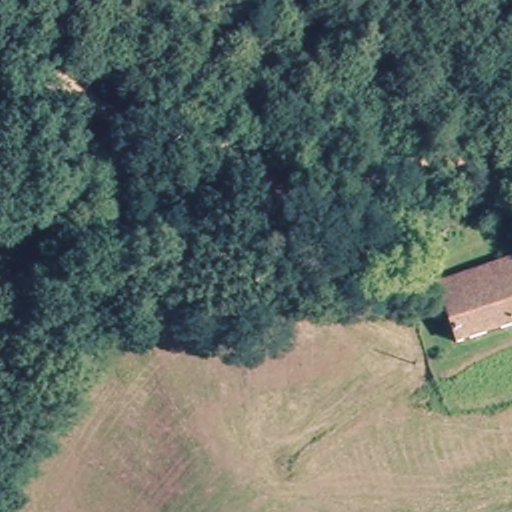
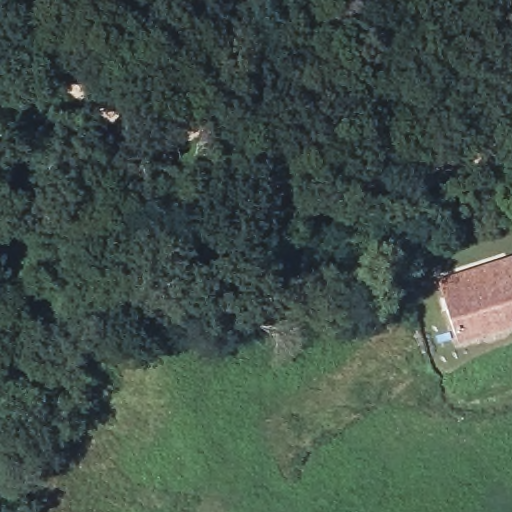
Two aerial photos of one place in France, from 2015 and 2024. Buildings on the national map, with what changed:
unchanged [(444,276),(512,261),(512,328),(456,343),(445,285),(444,276)]

